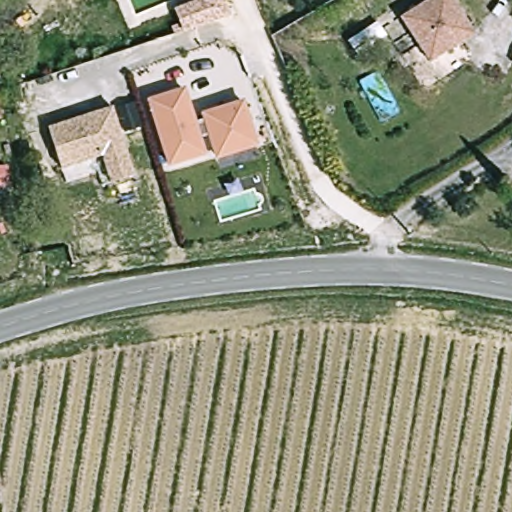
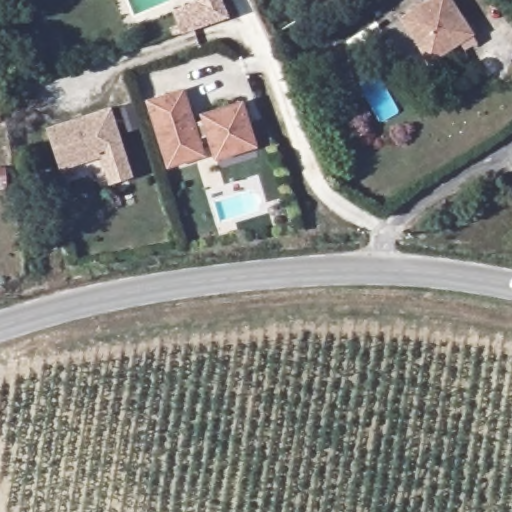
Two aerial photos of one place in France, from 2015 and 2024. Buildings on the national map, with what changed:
unchanged [(173,10),(197,0),(225,0),(232,16),(182,32),(173,10)]
unchanged [(422,0),(454,0),(472,32),(428,59),(400,13),(422,0)]
unchanged [(396,15),(401,25),(354,55),(348,44),(396,15)]
unchanged [(240,155),(216,162),(209,140),(198,143),(203,159),(168,170),(148,105),(183,94),(194,131),(205,128),(203,119),(242,107),(251,134),(256,150),(240,155)]
unchanged [(48,127),(113,106),(135,176),(109,182),(100,156),(60,169),(48,127)]

